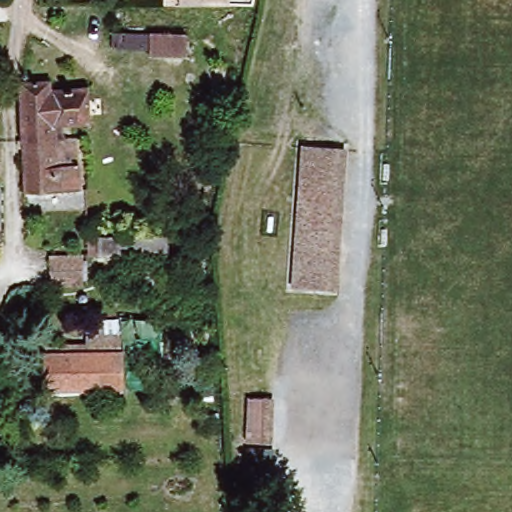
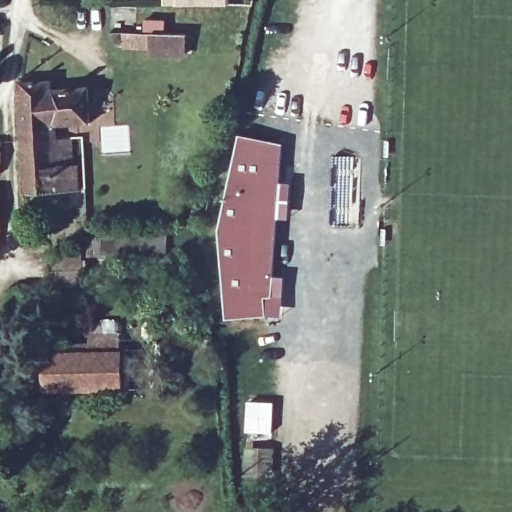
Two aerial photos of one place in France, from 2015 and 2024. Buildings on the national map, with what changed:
unchanged [(163,4),(163,0),(230,0),(230,4),(163,4)]
unchanged [(150,51),(151,31),(184,32),(183,52),(150,51)]
unchanged [(51,79),(51,87),(86,85),(89,123),(55,125),(56,136),(21,137),(19,79),(51,79)]
new [(241,130),(281,144),(272,295),(263,296),(265,314),(227,317),(220,229),(241,130)]
unchanged [(23,191),(21,137),(56,136),(72,136),(74,165),(79,164),(80,188),(23,191)]
unchanged [(0,165),(0,138),(1,157),(0,165)]
demolished [(292,286),(302,145),(335,147),(325,288),(292,286)]
unchanged [(166,235),(166,250),(125,251),(97,252),(97,237),(125,236),(166,235)]
unchanged [(51,282),(50,257),(81,255),(82,281),(51,282)]
unchanged [(119,351),(120,386),(46,387),(45,352),(119,351)]
unchanged [(244,437),(247,396),(268,397),(265,439),(244,437)]
unchanged [(244,473),(244,453),(262,453),(262,473),(244,473)]

